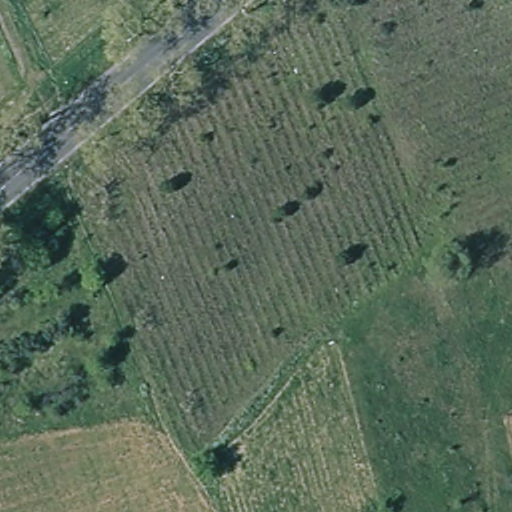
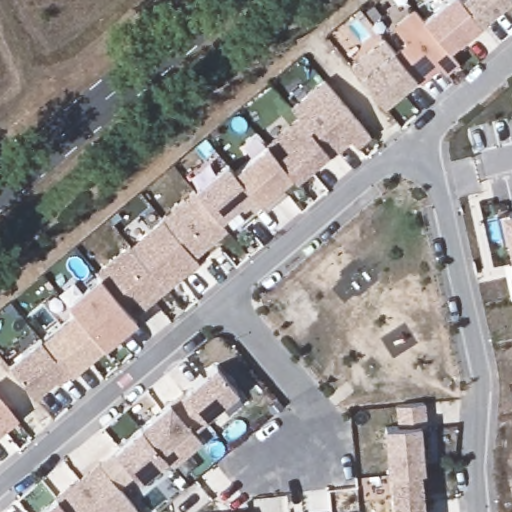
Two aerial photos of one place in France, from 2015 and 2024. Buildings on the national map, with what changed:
new [(448,49),(423,19),(446,0),(462,0),(481,22),(484,25),(470,37),(460,45),(457,42),(448,49)]
new [(462,0),(507,0),(481,22),(462,0)]
new [(432,69),(419,79),(416,77),(396,52),(408,43),(395,28),(416,10),(423,19),(448,49),(458,60),(445,71),(433,56),(438,64),(432,69)]
new [(384,39),(396,52),(416,77),(384,104),(351,65),(384,39)]
new [(313,90),(323,103),(334,92),(370,134),(357,145),(350,138),(331,154),(300,118),(292,108),(313,90)]
new [(295,177),(293,175),(268,145),(300,118),(331,154),(318,165),(315,162),(296,179),(295,177)]
new [(280,199),(266,210),(257,199),(235,172),(268,145),(293,175),(281,185),(287,193),(280,199)]
new [(228,164),(235,172),(257,199),(244,209),(239,204),(220,220),(196,192),(228,164)]
new [(195,191),(196,192),(220,220),(228,229),(195,257),(164,220),(163,218),(195,191)]
new [(512,212),(512,270),(500,215),(512,212)]
new [(134,315),(98,274),(130,246),(132,248),(164,220),(195,257),(198,260),(166,288),(147,304),(134,315)]
new [(123,343),(110,354),(104,347),(75,313),(70,305),(102,279),(136,319),(124,329),(117,335),(123,343)]
new [(75,313),(104,347),(72,374),(71,374),(42,339),(75,313)]
new [(42,339),(71,374),(58,384),(53,378),(34,394),(9,366),(42,339)]
new [(217,365),(238,391),(205,418),(184,393),(217,365)]
new [(183,392),(184,393),(205,418),(207,421),(194,432),(202,442),(173,466),(167,458),(142,428),(141,428),(183,392)]
new [(0,427),(0,403),(12,417),(0,427)]
new [(399,426),(397,404),(424,403),(426,424),(420,425),(424,471),(420,471),(390,474),(386,427),(399,426)]
new [(142,428),(167,458),(140,480),(115,451),(142,428)]
new [(70,484),(71,487),(99,463),(137,508),(131,512),(68,512),(57,499),(56,497),(70,484)]
new [(420,471),(424,512),(393,512),(390,474),(420,471)]
new [(57,499),(68,512),(41,512),(57,499)]

